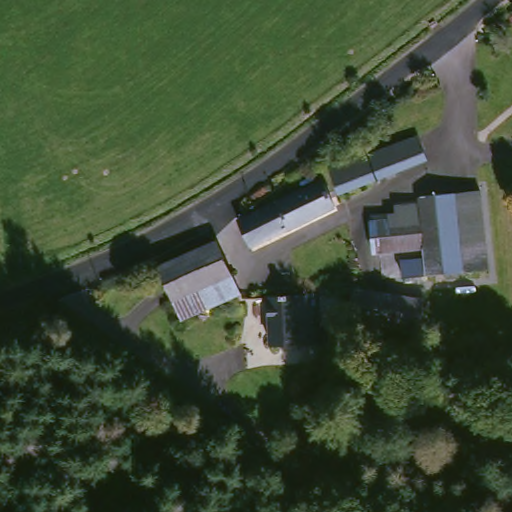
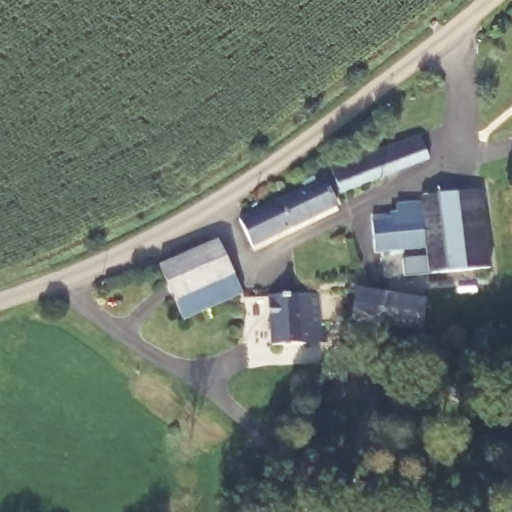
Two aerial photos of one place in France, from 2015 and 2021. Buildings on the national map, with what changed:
unchanged [(341,191),(331,161),(404,140),(418,136),(426,165),(407,171),(341,191)]
unchanged [(318,183),(329,211),(249,247),(238,219),(318,183)]
unchanged [(425,250),(420,196),(481,191),(489,265),(427,272),(425,250)]
unchanged [(382,254),(379,217),(407,215),(405,197),(420,196),(425,250),(382,254)]
unchanged [(176,300),(161,266),(218,241),(243,298),(208,312),(185,321),(176,300)]
unchanged [(270,340),(271,289),(307,290),(306,328),(318,328),(318,343),(270,340)]
unchanged [(359,289),(424,298),(419,330),(354,321),(359,289)]

